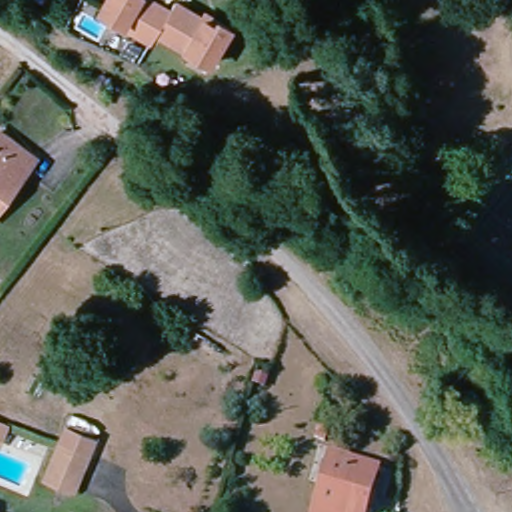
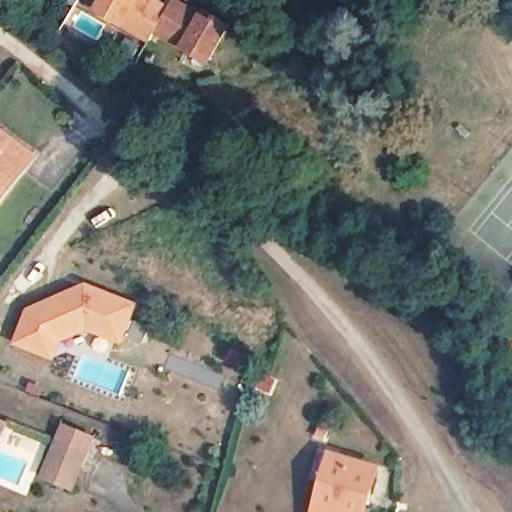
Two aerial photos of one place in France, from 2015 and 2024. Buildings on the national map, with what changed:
unchanged [(104,21),(116,0),(147,0),(144,5),(174,21),(172,25),(167,32),(165,35),(161,43),(156,51),(104,21)]
unchanged [(174,21),(179,12),(208,29),(210,25),(234,38),(214,73),(161,43),(165,35),(167,32),(172,25),(174,21)]
unchanged [(0,210),(0,138),(4,134),(38,160),(0,210)]
new [(24,307),(84,281),(139,303),(121,345),(86,332),(62,342),(53,361),(11,344),(24,307)]
unchanged [(0,443),(0,422),(9,425),(1,444),(0,443)]
unchanged [(55,483),(49,481),(64,446),(71,430),(77,433),(99,442),(78,485),(75,493),(62,487),(55,483)]
unchanged [(362,512),(312,512),(327,465),(372,478),(362,512)]

